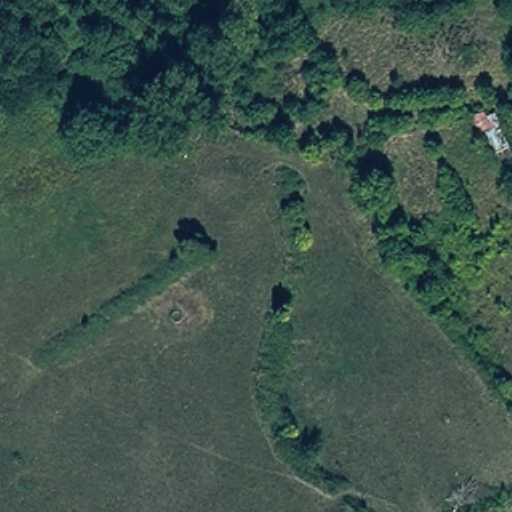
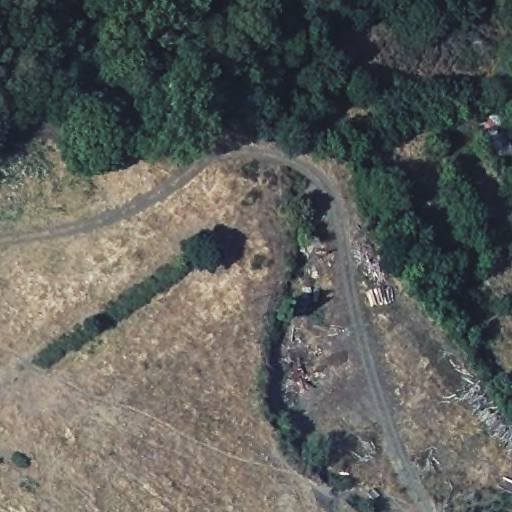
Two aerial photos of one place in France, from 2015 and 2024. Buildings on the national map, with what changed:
unchanged [(498,170),(479,130),(471,133),(464,119),(483,109),(486,115),(494,111),(512,149),(512,163),(498,170)]

